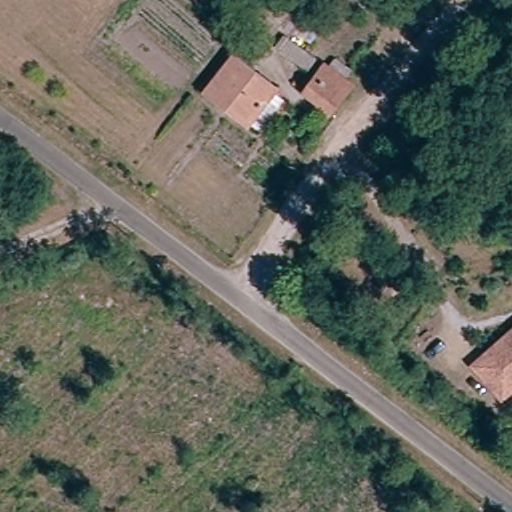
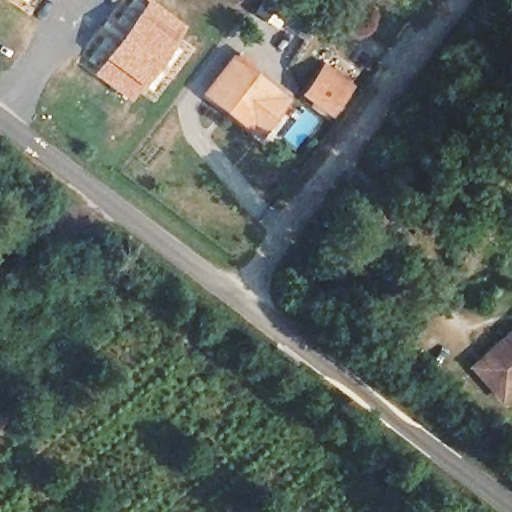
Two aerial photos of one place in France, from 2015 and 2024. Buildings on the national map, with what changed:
new [(11,2),(9,0),(12,0),(11,2)]
new [(115,41),(146,0),(153,0),(189,27),(130,100),(92,74),(115,41)]
unchanged [(301,6),(297,13),(326,32),(307,52),(252,15),(263,0),(292,0),(301,6)]
unchanged [(209,101),(236,66),(277,97),(252,132),(209,101)]
unchanged [(332,118),(307,101),(327,73),(352,91),(332,118)]
unchanged [(473,361),(512,329),(512,385),(501,394),(473,361)]

